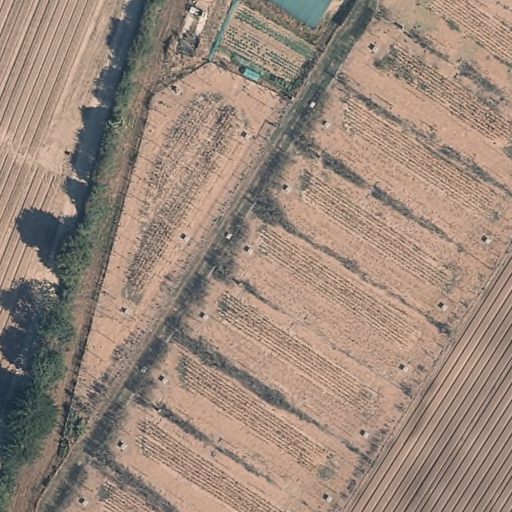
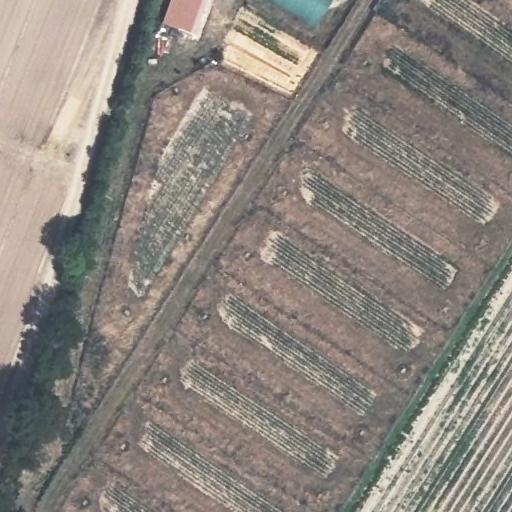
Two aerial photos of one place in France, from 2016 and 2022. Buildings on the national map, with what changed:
new [(169,0),(206,0),(193,35),(160,22),(169,0)]
unchanged [(316,29),(267,0),(333,0),(316,29)]

